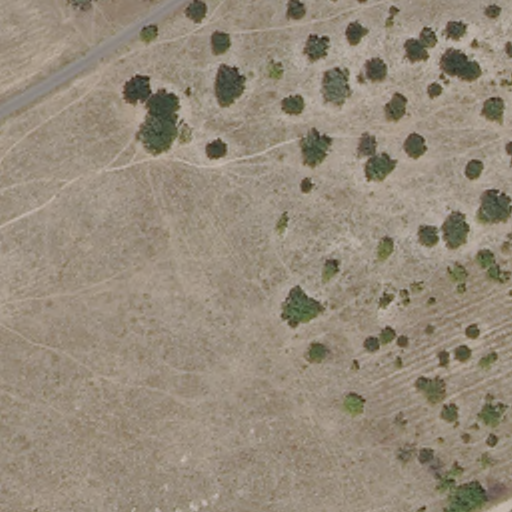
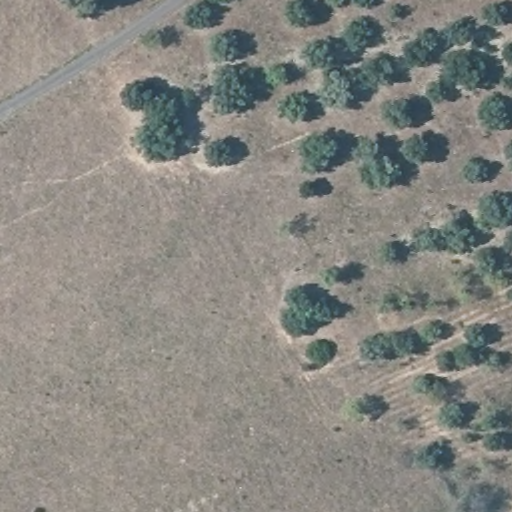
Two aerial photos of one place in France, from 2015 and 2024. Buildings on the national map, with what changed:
[]

